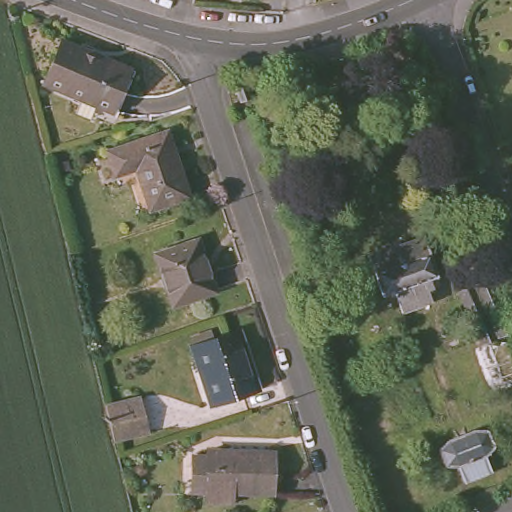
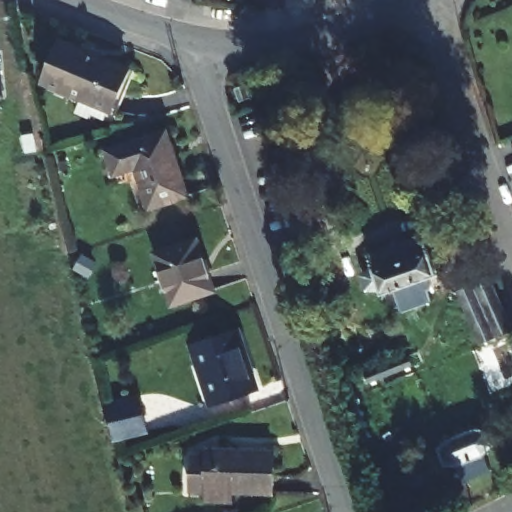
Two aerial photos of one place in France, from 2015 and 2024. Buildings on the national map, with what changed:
unchanged [(128,68),(109,112),(44,87),(61,42),(128,68)]
unchanged [(241,103),(236,90),(244,88),(249,100),(241,103)]
unchanged [(185,195),(145,208),(133,169),(113,174),(106,150),(164,133),(185,195)]
unchanged [(434,275),(428,278),(431,287),(426,289),(429,299),(397,312),(391,289),(376,294),(363,255),(420,235),(434,275)]
unchanged [(210,290),(168,304),(153,255),(193,242),(210,290)]
unchanged [(488,276),(511,331),(512,333),(512,381),(494,387),(474,348),(481,348),(456,293),(488,276)]
unchanged [(257,392),(209,407),(192,350),(239,337),(257,392)]
unchanged [(149,439),(114,449),(101,404),(136,394),(149,439)]
unchanged [(493,445),(484,458),(489,472),(462,483),(456,467),(442,466),(437,452),(446,439),(473,429),(487,429),(493,445)]
unchanged [(267,493),(226,492),(226,490),(200,489),(200,496),(185,496),(187,457),(201,458),(201,452),(268,454),(267,493)]

